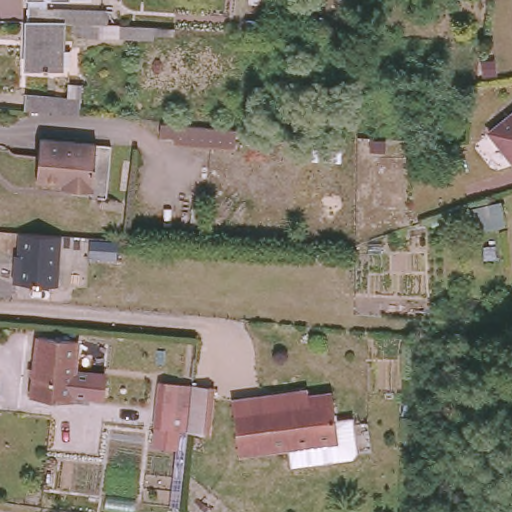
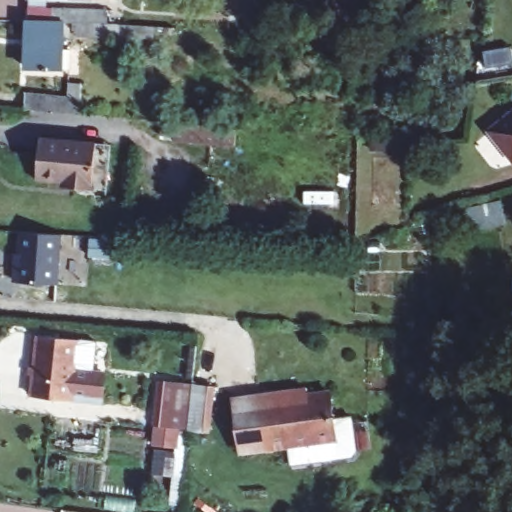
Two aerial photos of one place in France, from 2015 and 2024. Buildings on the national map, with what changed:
unchanged [(22,27),(22,15),(87,17),(100,17),(100,30),(148,31),(172,32),(171,41),(159,41),(158,45),(147,45),(75,44),(75,37),(67,37),(67,29),(58,28),(56,74),(20,73),(22,27)]
unchanged [(368,68),(366,95),(351,94),(354,67),(368,68)]
unchanged [(25,95),(60,98),(67,99),(68,86),(82,87),(80,115),(23,110),(25,95)]
unchanged [(512,109),(512,156),(489,125),(512,109)]
unchanged [(228,150),(175,146),(176,139),(161,138),(162,124),(177,125),(230,129),(228,150)]
unchanged [(96,140),(92,187),(72,186),(72,179),(37,177),(40,136),(96,140)]
unchanged [(505,201),(510,219),(475,227),(470,208),(505,201)]
unchanged [(58,236),(55,290),(8,284),(17,233),(58,236)]
unchanged [(77,336),(73,367),(105,370),(102,393),(71,389),(70,396),(30,392),(37,332),(77,336)]
unchanged [(186,401),(183,426),(148,423),(152,378),(188,381),(186,401)]
unchanged [(339,436),(243,452),(235,399),(264,394),(307,387),(308,392),(331,389),(339,436)]

